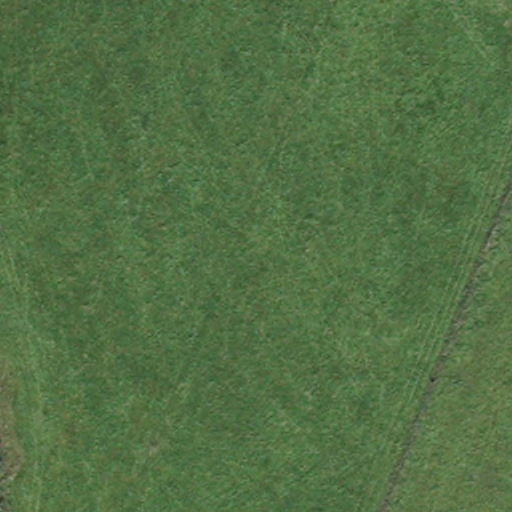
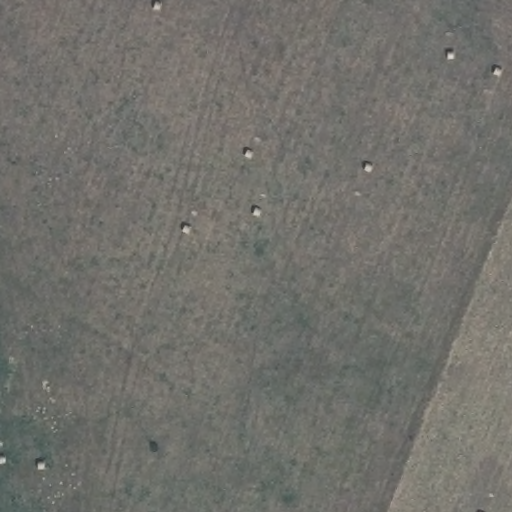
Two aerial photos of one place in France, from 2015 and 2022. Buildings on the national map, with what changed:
[]

